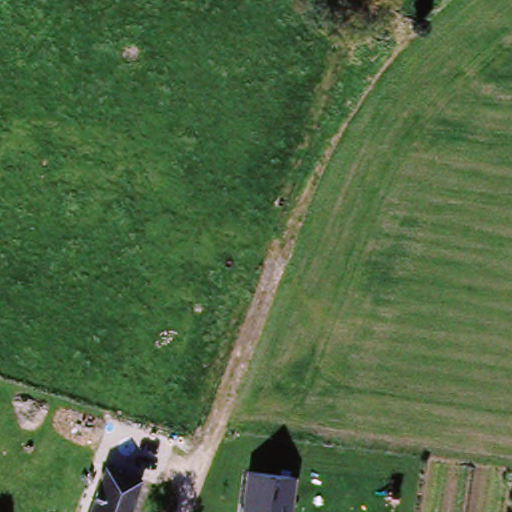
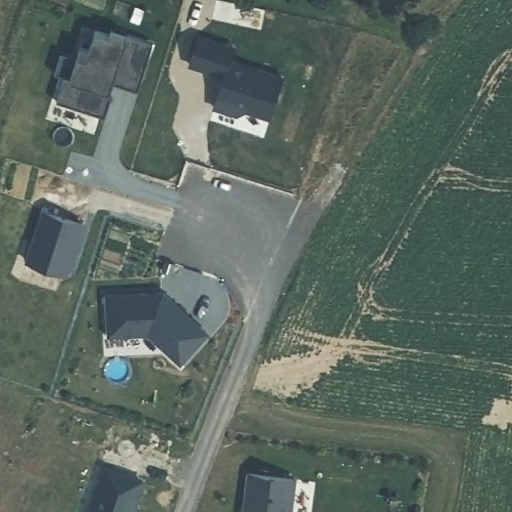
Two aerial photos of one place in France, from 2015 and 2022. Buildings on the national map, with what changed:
new [(51,74),(58,52),(74,57),(77,46),(87,49),(92,29),(107,34),(108,29),(152,42),(140,81),(115,73),(109,90),(112,91),(103,117),(53,102),(62,77),(51,74)]
new [(235,46),(233,59),(282,75),(270,118),(247,112),(238,116),(212,107),(222,76),(189,65),(196,34),(235,46)]
new [(42,212),(83,225),(68,271),(62,274),(27,263),(42,212)]
new [(160,291),(161,297),(167,302),(170,299),(207,331),(180,361),(148,332),(109,336),(105,296),(160,291)]
unchanged [(90,512),(105,472),(108,473),(112,464),(129,470),(125,479),(142,485),(133,512),(90,512)]
unchanged [(293,479),(289,512),(244,512),(248,474),(293,479)]

